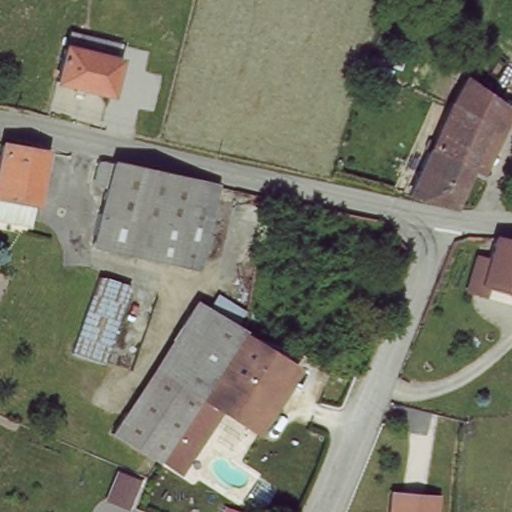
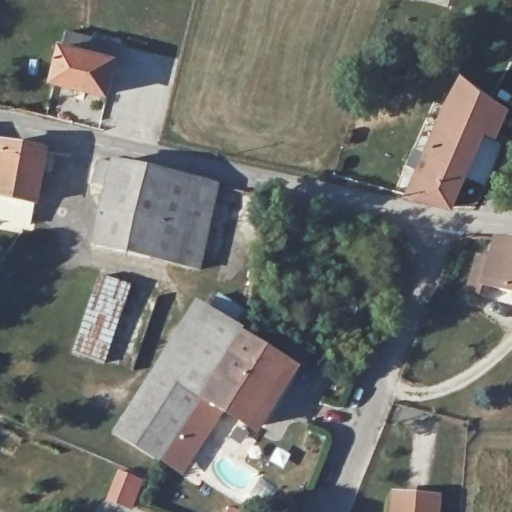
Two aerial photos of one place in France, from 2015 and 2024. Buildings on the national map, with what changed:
unchanged [(58,82),(66,49),(119,61),(111,94),(58,82)]
unchanged [(500,102),(510,110),(485,172),(472,164),(450,213),(403,201),(465,76),(500,102)]
unchanged [(32,207),(28,228),(0,222),(0,145),(43,152),(32,207)]
unchanged [(203,272),(97,247),(112,191),(97,187),(104,160),(222,186),(203,272)]
unchanged [(486,282),(497,244),(502,245),(502,238),(512,239),(512,289),(486,282)]
unchanged [(97,281),(128,291),(110,351),(105,349),(99,367),(73,358),(97,281)]
unchanged [(207,313),(215,299),(240,313),(232,327),(247,336),(208,400),(168,378),(207,313)]
unchanged [(292,362),(252,427),(208,400),(247,336),(292,362)]
unchanged [(112,440),(155,371),(168,378),(208,400),(167,467),(112,440)]
unchanged [(437,512),(391,512),(393,497),(394,491),(438,497),(437,512)]

